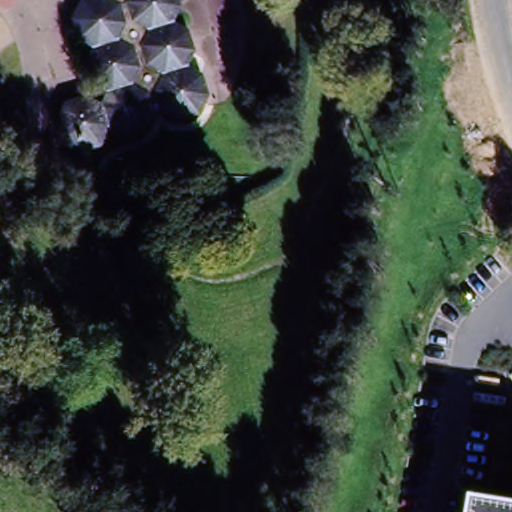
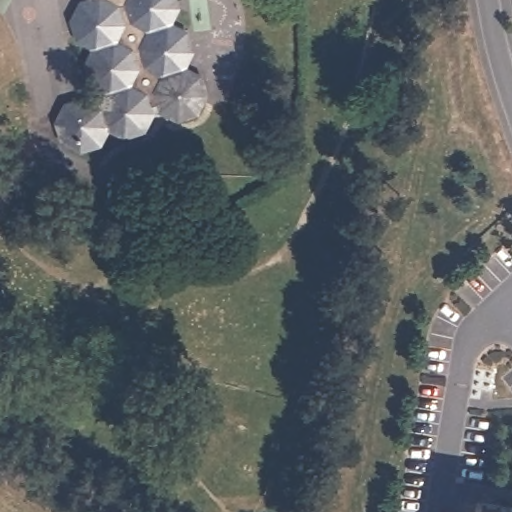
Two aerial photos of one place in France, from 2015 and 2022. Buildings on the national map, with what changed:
unchanged [(66,100),(83,96),(100,102),(101,92),(86,82),(83,60),(89,50),(77,41),(70,23),(77,4),(85,0),(177,0),(180,8),(174,26),(187,30),(194,52),(189,69),(203,75),(208,96),(197,117),(175,122),(162,114),(155,117),(143,134),(121,139),(110,132),(102,148),(79,153),(59,141),(54,122),(66,100)]
unchanged [(479,505),(512,511),(512,512),(478,512),(479,505)]

